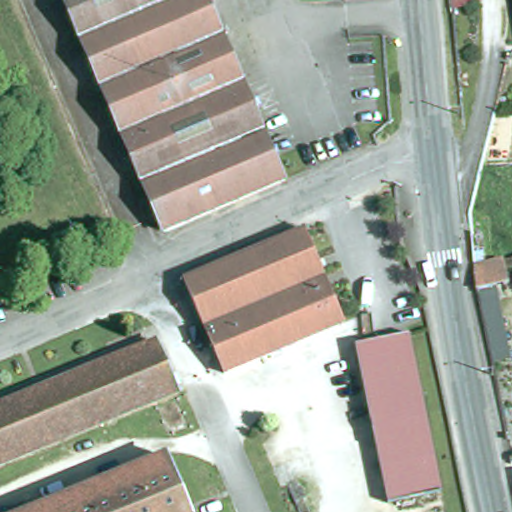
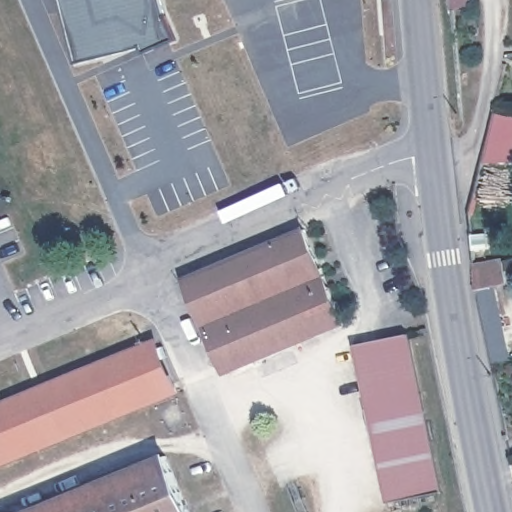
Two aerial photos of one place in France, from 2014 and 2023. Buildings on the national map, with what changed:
new [(75,64),(60,0),(162,0),(174,40),(75,64)]
demolished [(63,0),(206,0),(285,183),(163,234),(63,0)]
new [(470,10),(451,12),(450,0),(469,0),(470,10)]
new [(512,161),(482,162),(494,112),(512,116),(512,161)]
unchanged [(344,324),(224,376),(184,283),(286,239),(304,232),(344,324)]
unchanged [(501,260),(506,284),(475,291),(471,268),(501,260)]
unchanged [(412,335),(443,495),(389,505),(357,346),(412,335)]
unchanged [(177,397),(0,469),(0,407),(156,344),(177,397)]
unchanged [(188,512),(39,512),(167,459),(188,512)]

